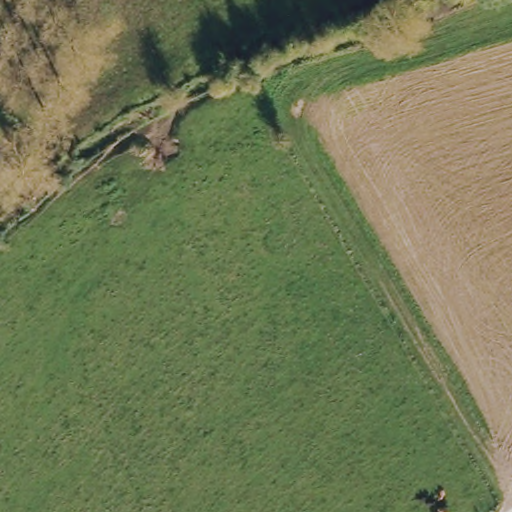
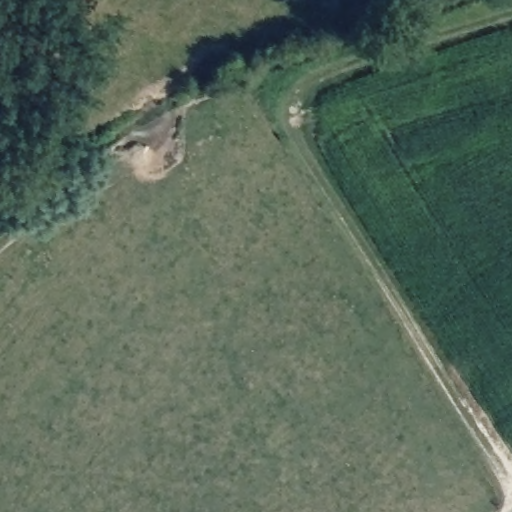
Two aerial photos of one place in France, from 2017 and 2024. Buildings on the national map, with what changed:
unchanged [(351,206),(335,215),(322,194),(338,184),(351,206)]

